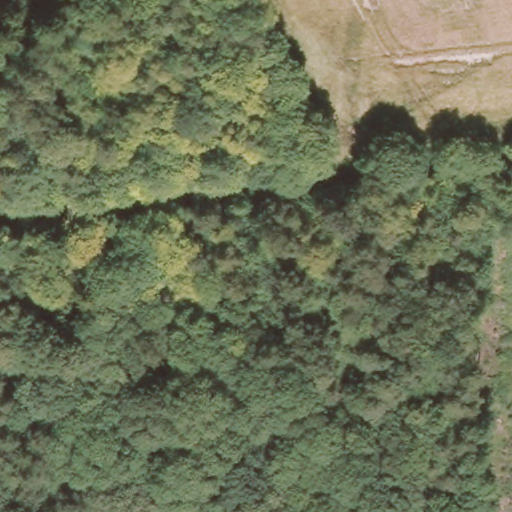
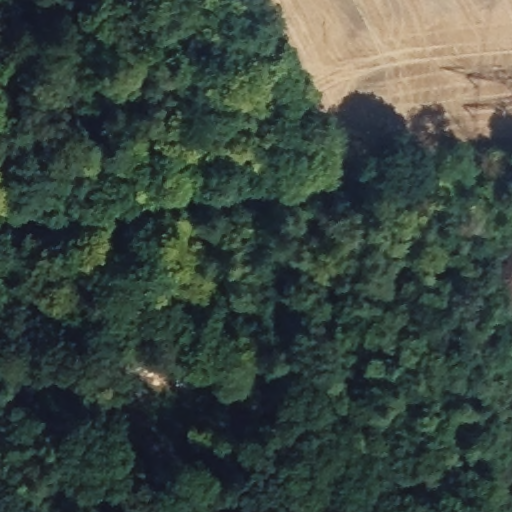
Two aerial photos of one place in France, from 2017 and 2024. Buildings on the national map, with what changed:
unchanged [(488,235),(504,254),(487,267),(471,249),(488,235)]

